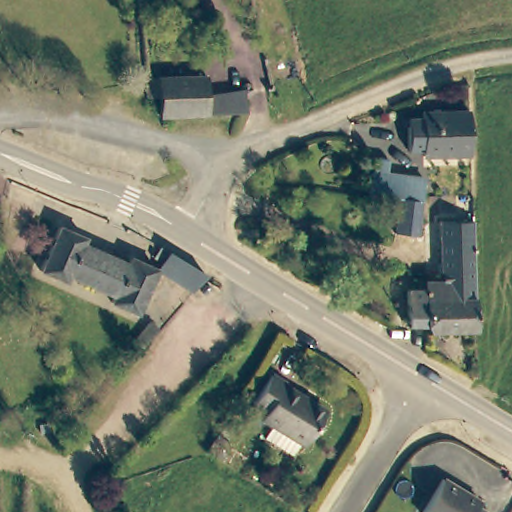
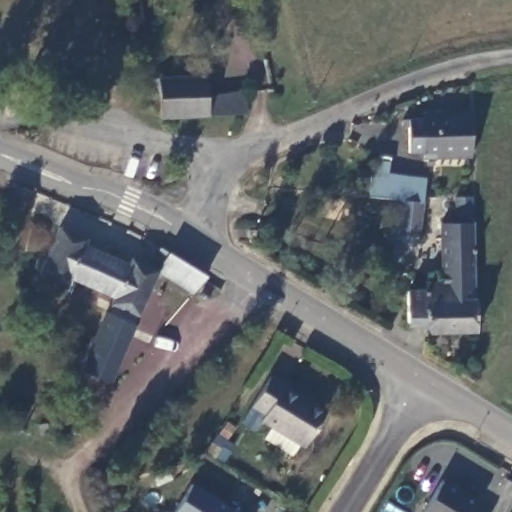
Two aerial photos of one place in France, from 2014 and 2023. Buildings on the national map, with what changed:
unchanged [(247,99),(249,114),(213,119),(172,125),(169,106),(155,108),(151,82),(206,77),(209,99),(246,90),(247,99)]
unchanged [(409,120),(429,121),(429,115),(477,116),(476,159),(429,158),(429,154),(414,153),(414,127),(408,127),(408,120),(409,120)]
unchanged [(420,247),(393,244),(398,199),(368,196),(370,173),(402,175),(427,175),(420,247)]
unchanged [(440,303),(441,283),(443,221),(475,223),(474,305),(440,303)]
unchanged [(134,317),(108,304),(111,298),(65,277),(61,284),(37,272),(57,225),(83,239),(80,245),(127,266),(130,259),(156,273),(153,279),(134,317)]
unchanged [(198,279),(191,295),(153,279),(156,273),(161,263),(149,257),(153,245),(167,252),(203,270),(198,279)]
unchanged [(426,334),(420,328),(401,327),(402,289),(421,290),(421,281),(441,283),(440,303),(474,305),(474,335),(426,334)]
new [(106,311),(136,325),(106,383),(78,368),(106,311)]
demolished [(138,351),(159,333),(166,342),(146,361),(146,362),(138,351)]
unchanged [(265,436),(273,423),(265,419),(258,430),(244,422),(276,372),(289,379),(286,384),(329,410),(308,444),(302,441),(295,454),(265,436)]
new [(191,483),(237,512),(174,512),(191,483)]
demolished [(255,500),(248,512),(208,512),(228,483),(255,500)]
unchanged [(447,484),(484,507),(481,512),(429,512),(447,484)]

